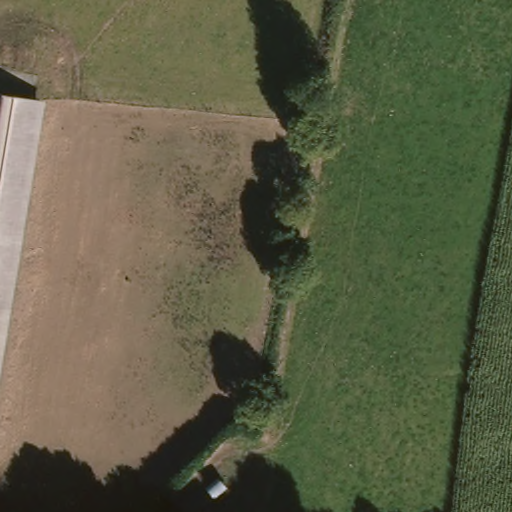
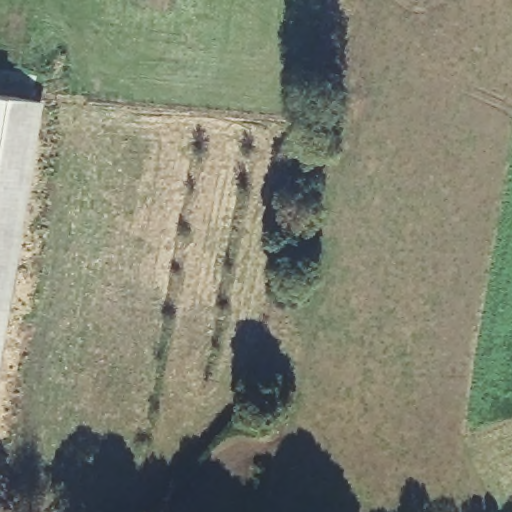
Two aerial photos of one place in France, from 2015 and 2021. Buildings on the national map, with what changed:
unchanged [(0,336),(0,97),(39,103),(0,336)]

